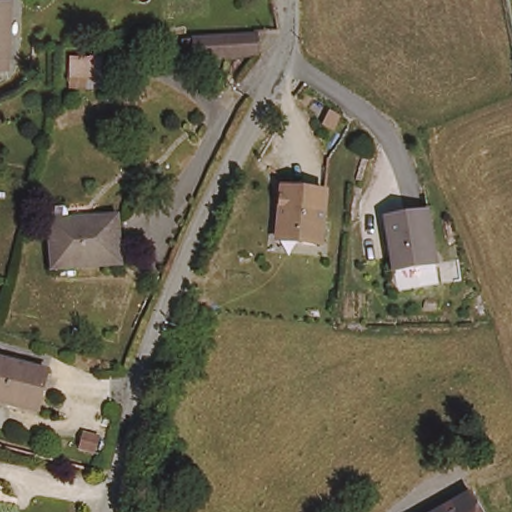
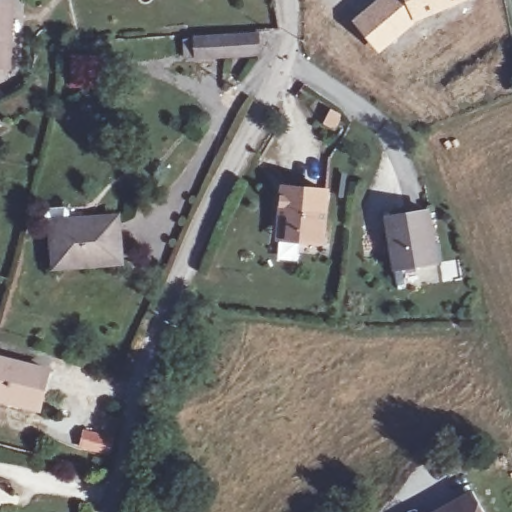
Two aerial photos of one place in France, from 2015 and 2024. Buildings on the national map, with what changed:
new [(467,0),(417,22),(378,53),(350,20),(374,0),(467,0)]
unchanged [(0,3),(12,4),(9,69),(0,68),(0,3)]
unchanged [(195,39),(259,35),(260,55),(197,59),(195,39)]
unchanged [(103,57),(102,79),(72,77),(73,57),(103,57)]
unchanged [(0,105),(0,103),(17,92),(27,107),(9,119),(0,105)]
unchanged [(280,232),(284,187),(327,192),(322,244),(300,242),(279,240),(280,232)]
unchanged [(61,267),(57,227),(52,227),(51,212),(54,209),(70,207),(74,210),(75,226),(97,224),(97,221),(122,219),(125,262),(61,267)]
unchanged [(387,219),(428,212),(437,263),(395,270),(387,219)]
unchanged [(54,372),(45,411),(0,399),(0,362),(1,358),(54,372)]
unchanged [(82,447),(86,432),(100,437),(97,451),(82,447)]
unchanged [(472,493),(483,512),(439,512),(472,493)]

